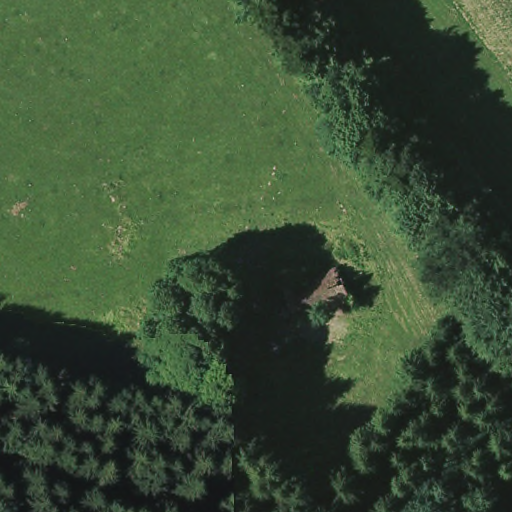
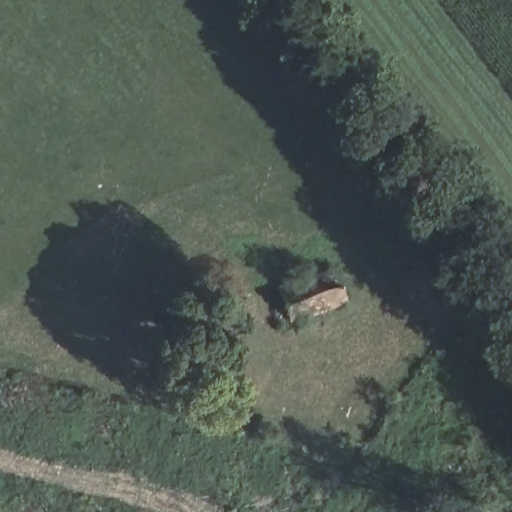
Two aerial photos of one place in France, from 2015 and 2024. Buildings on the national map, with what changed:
unchanged [(288,322),(272,286),(332,262),(343,298),(288,322)]

